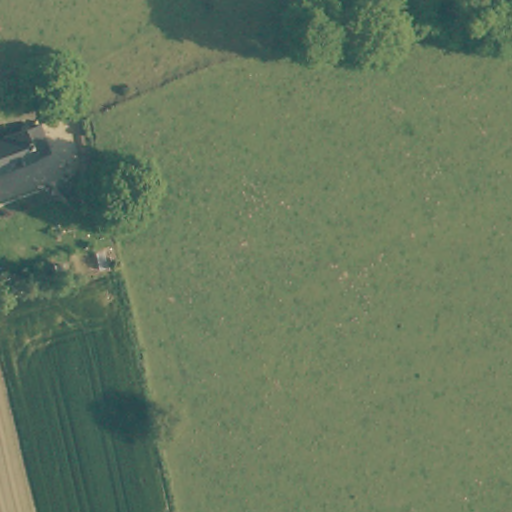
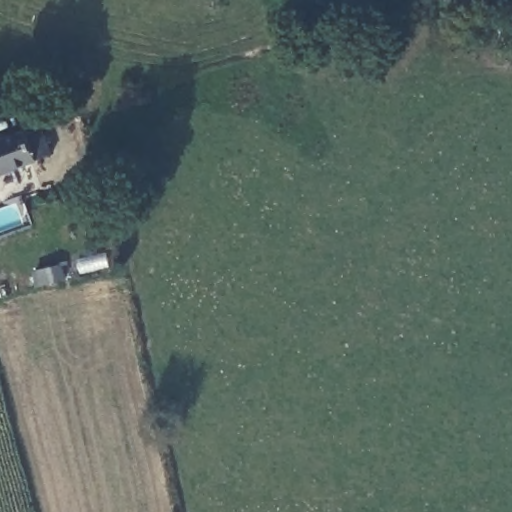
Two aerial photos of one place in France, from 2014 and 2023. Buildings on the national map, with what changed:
unchanged [(0,173),(0,137),(22,126),(40,153),(0,173)]

